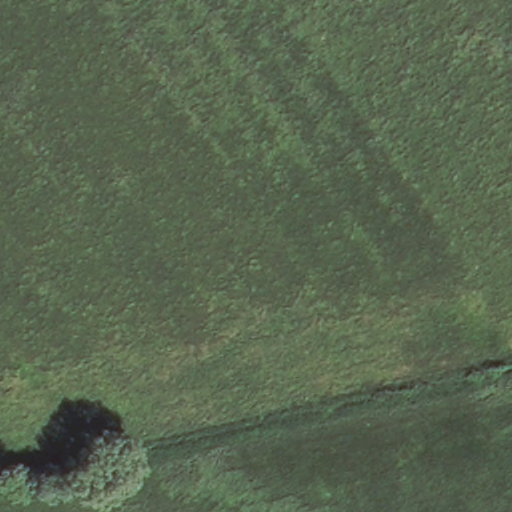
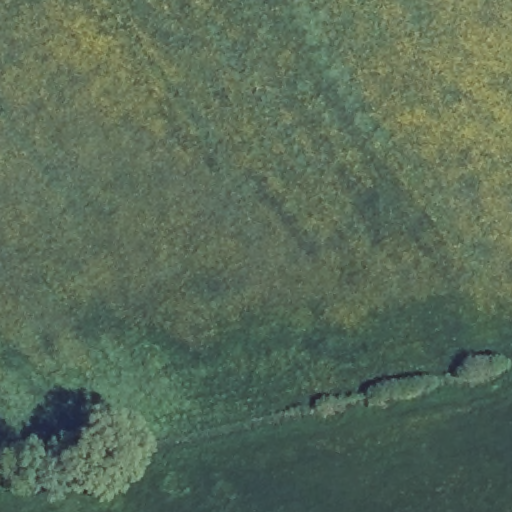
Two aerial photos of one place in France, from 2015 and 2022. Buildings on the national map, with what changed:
[]

